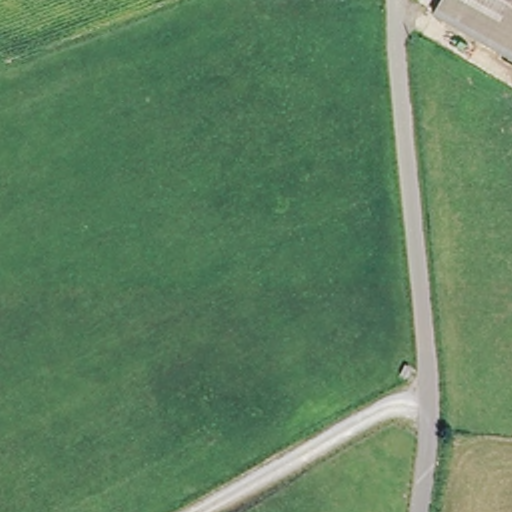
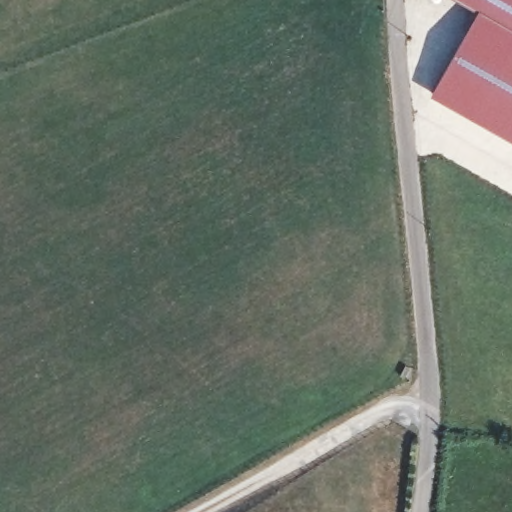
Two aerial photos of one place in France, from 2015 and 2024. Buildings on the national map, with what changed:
new [(429,95),(477,8),(464,0),(512,0),(512,140),(429,95)]
demolished [(434,16),(443,0),(512,0),(512,59),(434,16)]

